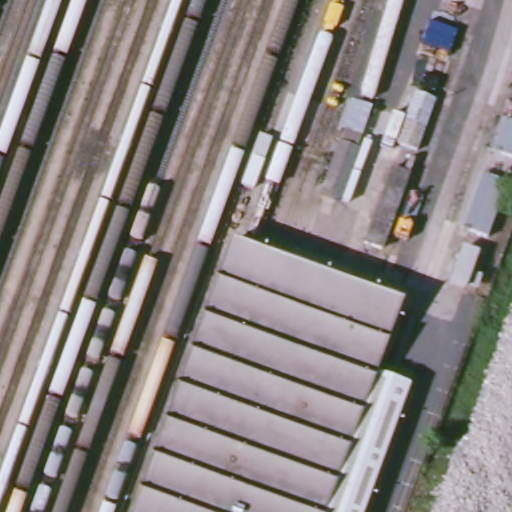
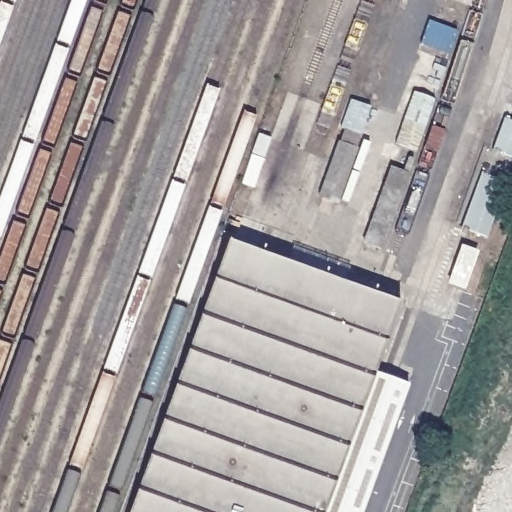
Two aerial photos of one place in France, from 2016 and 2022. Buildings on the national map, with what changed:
unchanged [(433,96),(417,149),(395,143),(411,89),(433,96)]
unchanged [(370,105),(337,203),(319,196),(341,128),(340,127),(350,97),(370,105)]
unchanged [(496,150),(509,118),(512,119),(512,157),(496,150)]
unchanged [(407,170),(381,248),(362,243),(388,164),(407,170)]
unchanged [(460,228),(480,173),(506,182),(485,238),(460,228)]
unchanged [(226,239),(398,303),(372,373),(405,386),(359,512),(125,512),(226,239)]
unchanged [(452,284),(465,248),(480,253),(466,289),(452,284)]

